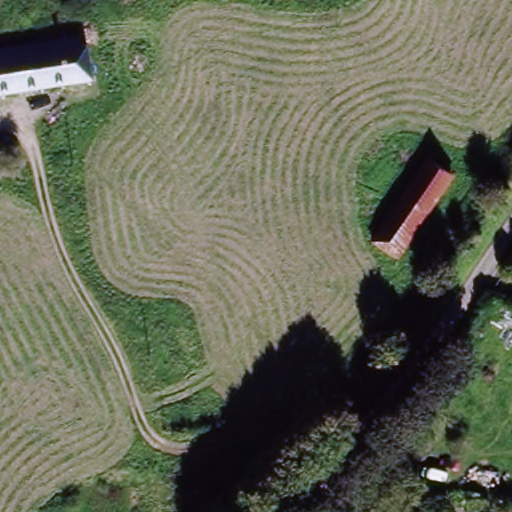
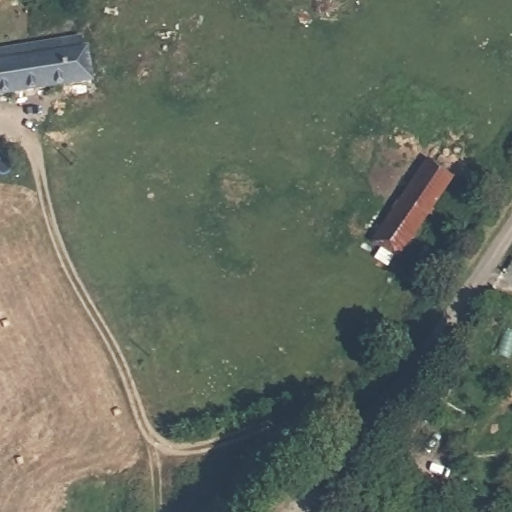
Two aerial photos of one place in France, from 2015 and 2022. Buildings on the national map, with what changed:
unchanged [(0,99),(0,55),(74,45),(75,53),(87,51),(92,85),(0,99)]
unchanged [(372,241),(424,162),(448,178),(395,258),(372,241)]

